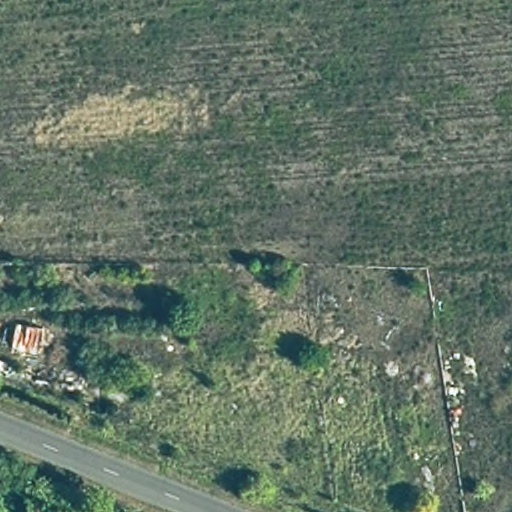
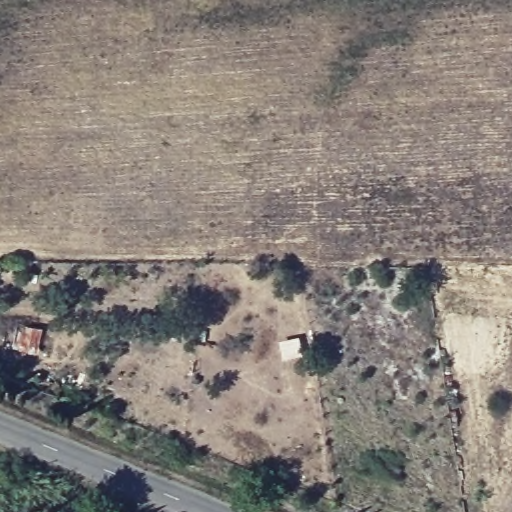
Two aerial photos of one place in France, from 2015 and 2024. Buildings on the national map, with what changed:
unchanged [(18,324),(46,330),(43,360),(11,351),(18,324)]

